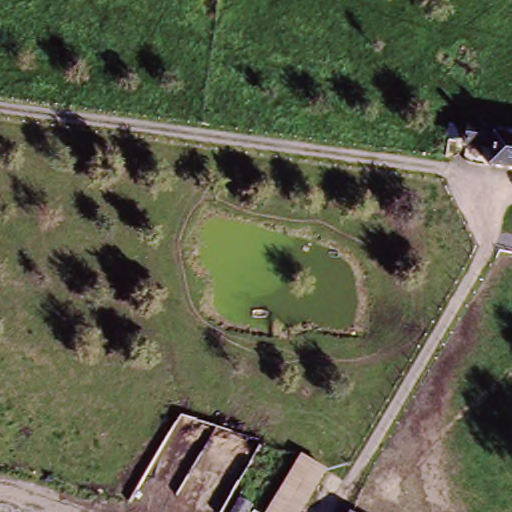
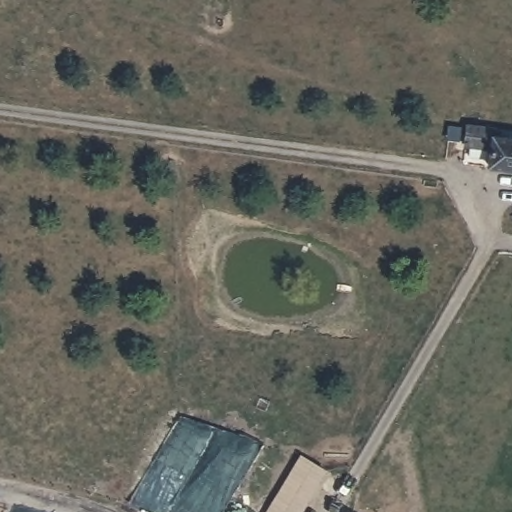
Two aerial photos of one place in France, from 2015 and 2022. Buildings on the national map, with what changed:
unchanged [(490,167),(492,149),(466,145),(469,126),(495,129),(494,138),(512,141),(512,170),(490,167)]
unchanged [(331,469),(305,512),(266,512),(302,452),(331,469)]
unchanged [(229,512),(239,495),(255,504),(251,512),(229,512)]

